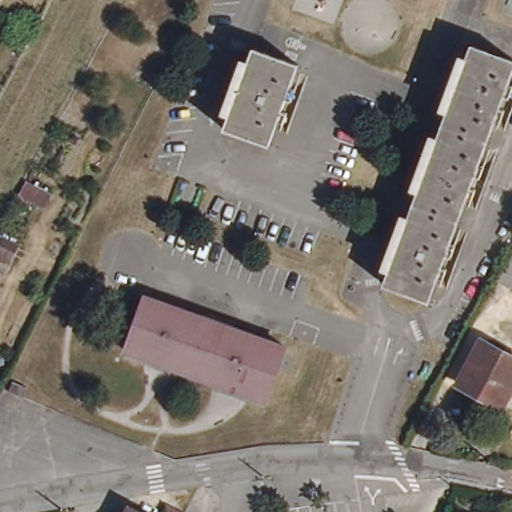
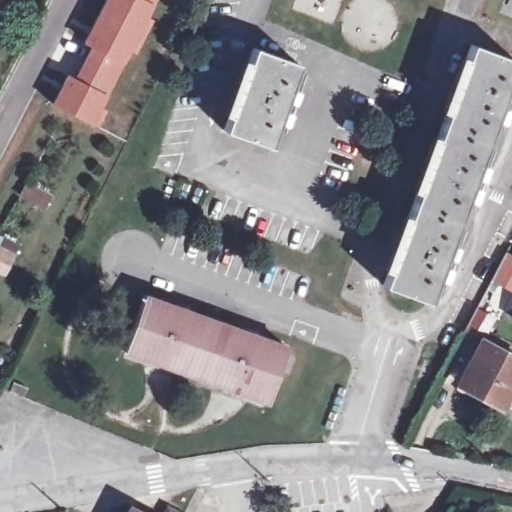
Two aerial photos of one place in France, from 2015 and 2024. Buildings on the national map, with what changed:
new [(155,0),(145,19),(152,22),(144,37),(100,14),(108,0),(155,0)]
new [(94,46),(86,43),(100,14),(144,37),(136,51),(130,49),(114,79),(85,64),(94,46)]
unchanged [(472,46),(512,62),(512,73),(429,300),(385,284),(392,266),(430,162),(465,67),(472,46)]
unchanged [(272,144),(227,128),(255,47),(300,64),(287,103),(272,144)]
new [(68,77),(75,81),(85,64),(114,79),(99,109),(105,111),(97,126),(54,104),(68,77)]
unchanged [(512,254),(512,291),(497,284),(509,260),(512,254)]
unchanged [(282,346),(264,400),(127,349),(145,294),(162,300),(269,341),(282,346)]
new [(477,309),(495,319),(486,337),(468,327),(477,309)]
unchanged [(512,394),(507,403),(492,394),(487,402),(462,389),(489,339),(512,352),(512,394)]
unchanged [(14,380),(27,386),(23,396),(9,389),(14,380)]
unchanged [(137,512),(125,512),(128,507),(137,512)]
unchanged [(166,508),(173,512),(164,512),(166,508)]

